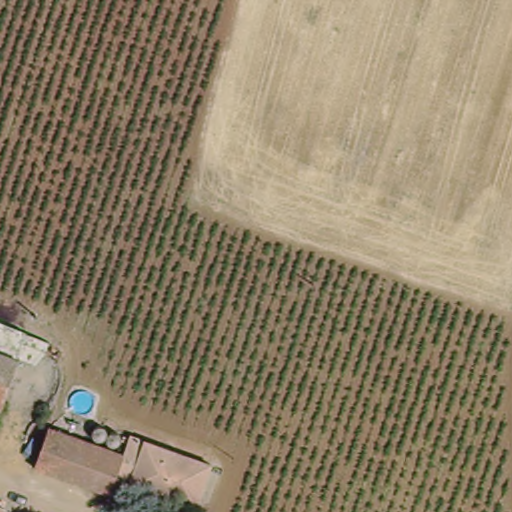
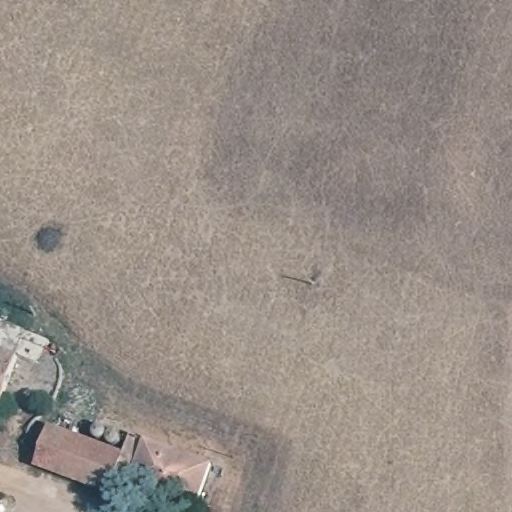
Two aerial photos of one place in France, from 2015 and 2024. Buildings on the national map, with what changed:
unchanged [(20,353),(5,397),(0,395),(0,318),(27,328),(20,353)]
unchanged [(0,408),(0,395),(5,397),(0,408)]
unchanged [(59,481),(29,472),(43,432),(73,442),(60,482),(59,481)]
unchanged [(108,497),(60,482),(73,442),(122,458),(108,497)]
unchanged [(145,443),(212,465),(198,509),(140,490),(131,487),(140,456),(145,443)]
unchanged [(5,512),(0,512),(0,497),(8,500),(5,512)]

